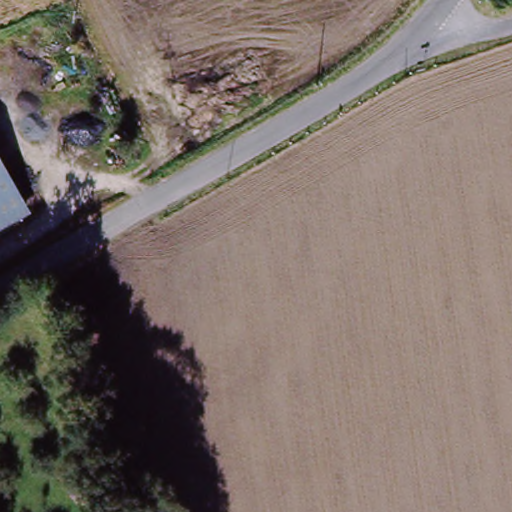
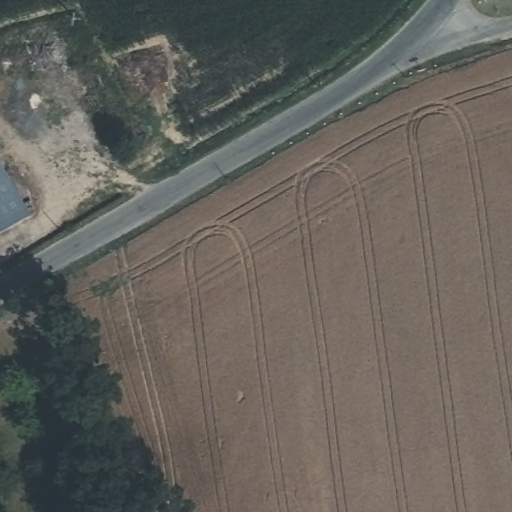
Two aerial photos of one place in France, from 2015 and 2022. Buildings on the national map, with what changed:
unchanged [(0,230),(0,156),(31,211),(0,230)]

